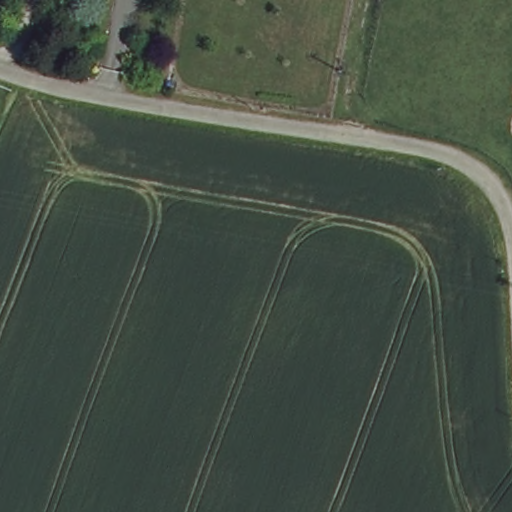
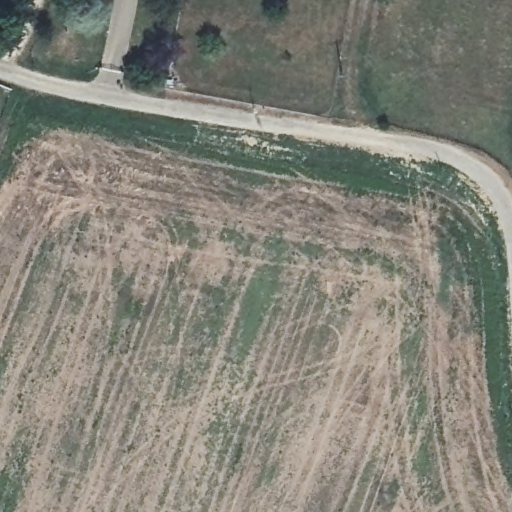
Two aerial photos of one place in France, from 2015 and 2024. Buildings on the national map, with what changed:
[]

